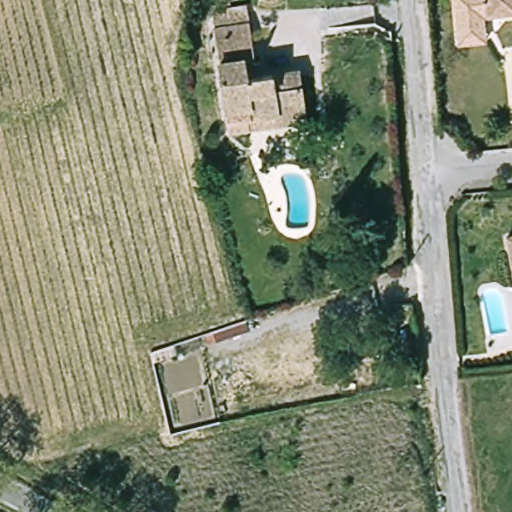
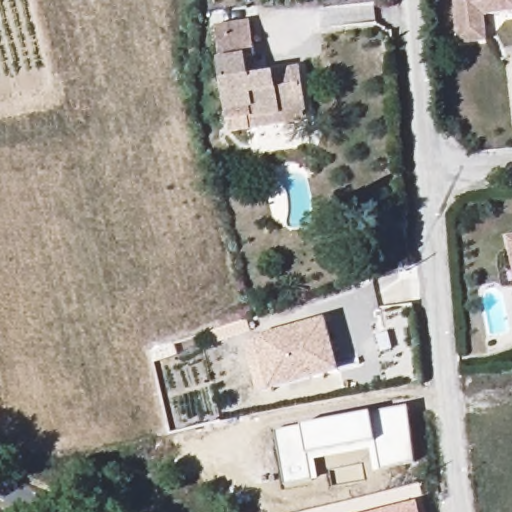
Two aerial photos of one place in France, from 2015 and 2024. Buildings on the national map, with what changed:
unchanged [(461,30),(457,0),(512,0),(512,11),(486,14),(488,27),(489,40),(462,42),(461,30)]
unchanged [(249,126),(238,129),(213,22),(251,13),(261,51),(245,54),(250,72),(298,62),(308,103),(310,112),(249,126)]
new [(270,392),(258,394),(243,343),(257,340),(256,337),(327,318),(341,372),(270,392)]
new [(309,456),(313,481),(285,485),(275,432),(303,427),(372,413),(409,407),(416,463),(383,472),(378,442),(309,456)]
new [(420,512),(378,512),(418,502),(420,512)]

